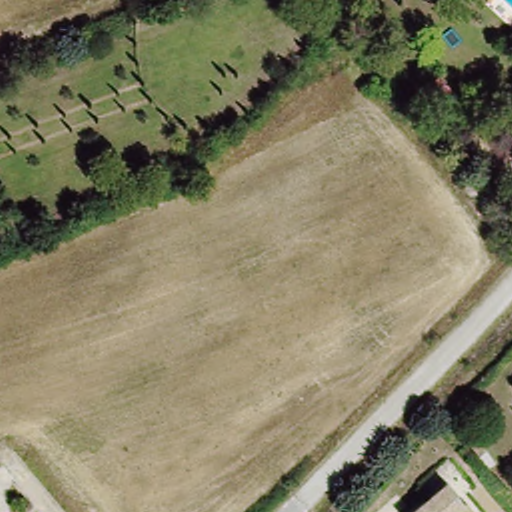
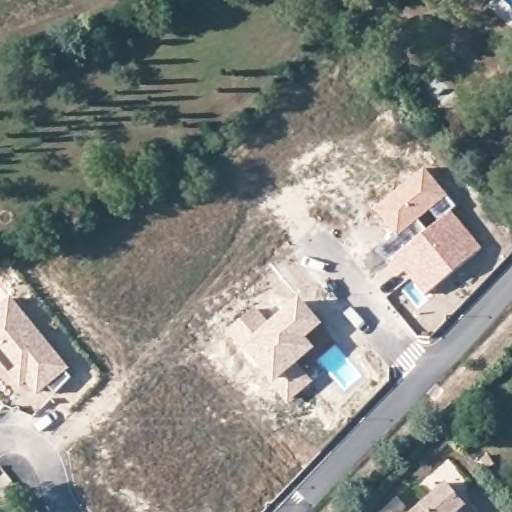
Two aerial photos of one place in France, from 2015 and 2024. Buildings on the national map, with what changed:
new [(424,166),(456,206),(452,209),(437,220),(430,212),(398,238),(372,208),(424,166)]
new [(437,220),(452,209),(483,248),(425,295),(404,272),(400,275),(387,261),(437,220)]
new [(397,236),(398,238),(419,221),(426,229),(387,261),(379,250),(397,236)]
new [(287,403),(272,385),(225,331),(255,305),(269,322),(299,294),(323,324),(307,338),(315,348),(299,363),(313,381),(287,403)]
new [(10,296),(70,369),(67,372),(71,377),(55,393),(48,387),(37,395),(27,383),(21,388),(0,363),(0,303),(10,296)]
unchanged [(472,512),(412,512),(448,483),(472,512)]

